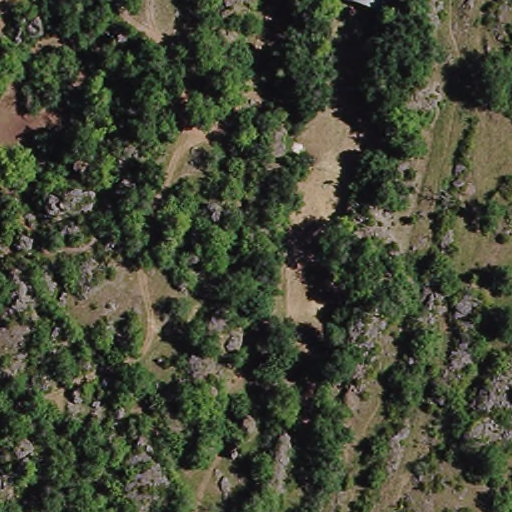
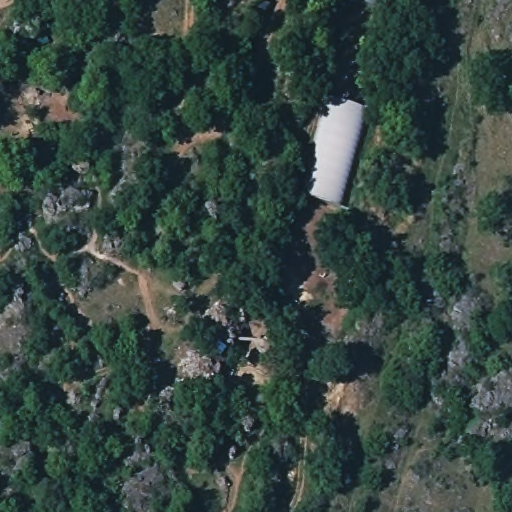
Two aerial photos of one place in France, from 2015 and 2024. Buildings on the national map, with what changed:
unchanged [(352,0),(387,0),(384,10),(352,0)]
new [(326,96),(366,108),(342,204),(301,195),(326,96)]

